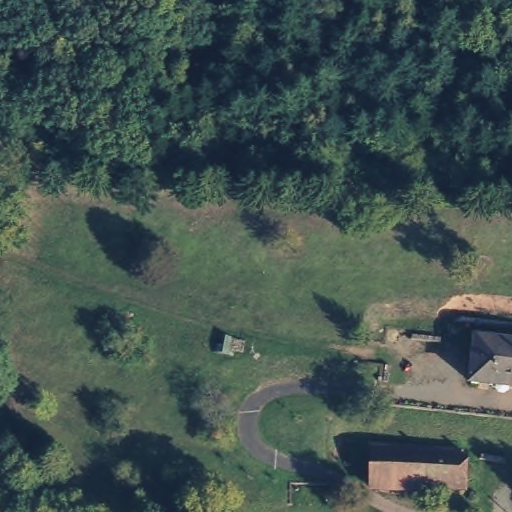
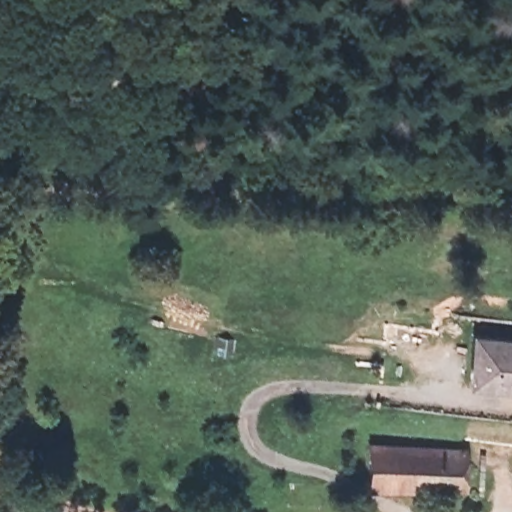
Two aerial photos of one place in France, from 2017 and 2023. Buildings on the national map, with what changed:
unchanged [(512,383),(470,378),(475,333),(512,338),(512,383)]
unchanged [(467,488),(371,487),(371,444),(467,446),(467,488)]

